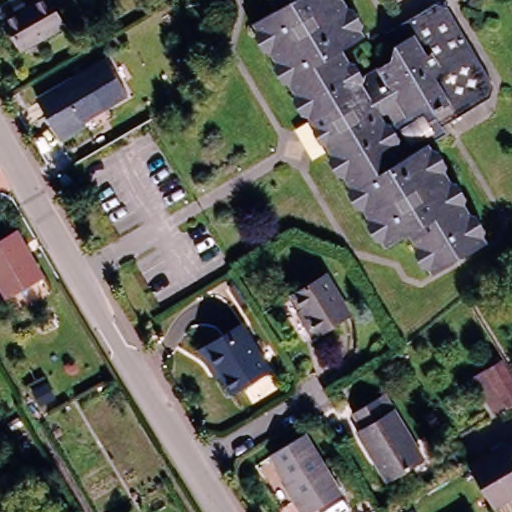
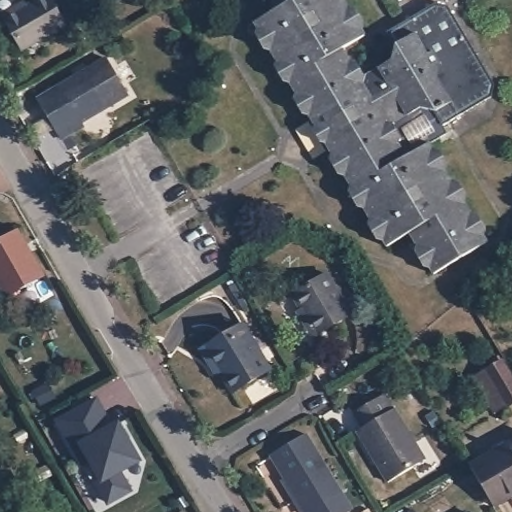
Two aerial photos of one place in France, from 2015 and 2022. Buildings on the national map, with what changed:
unchanged [(66,26),(24,51),(7,20),(4,16),(25,4),(27,9),(42,0),(51,0),(66,26)]
unchanged [(271,5),(268,0),(340,0),(346,1),(356,16),(354,22),(359,31),(366,34),(374,47),(373,54),(376,60),(353,72),(361,85),(366,86),(374,100),(404,82),(409,65),(402,52),(449,23),(461,25),(496,82),(493,93),(444,123),(436,110),(418,106),(389,124),(397,137),(395,144),(402,155),(424,141),(428,146),(434,147),(444,163),(441,169),(447,177),(453,179),(462,194),(460,200),(465,209),(472,210),(481,226),(479,231),(482,237),(428,270),(424,262),(417,260),(408,246),(411,240),(404,228),(381,242),(378,237),(371,235),(361,220),(364,214),(359,205),(351,203),(342,188),(344,181),(339,174),(332,171),(324,157),(326,150),(304,112),(297,111),(288,96),(290,90),(284,80),(278,80),(269,62),(271,56),(266,48),(259,46),(248,31),(251,25),(248,20),(271,5)]
unchanged [(39,95),(63,81),(109,55),(131,92),(81,120),(85,125),(63,137),(39,95)]
unchanged [(19,227),(45,272),(9,292),(0,276),(0,238),(19,227)]
unchanged [(303,322),(309,320),(293,293),(326,274),(352,315),(319,335),(313,338),(303,322)]
unchanged [(233,395),(220,371),(216,373),(199,345),(242,319),(246,325),(273,371),(233,395)]
unchanged [(486,378),(504,367),(512,380),(512,390),(498,398),(487,405),(475,384),(486,378)]
unchanged [(389,483),(358,430),(364,426),(354,411),(381,396),(386,393),(395,408),(426,460),(389,483)]
new [(95,401),(110,428),(118,425),(138,462),(118,473),(129,492),(107,504),(96,484),(100,481),(90,462),(81,467),(56,422),(95,401)]
unchanged [(288,479),(272,452),(309,430),(346,492),(312,512),(302,512),(284,481),(288,479)]
unchanged [(472,466),(512,443),(512,498),(496,506),(472,466)]

